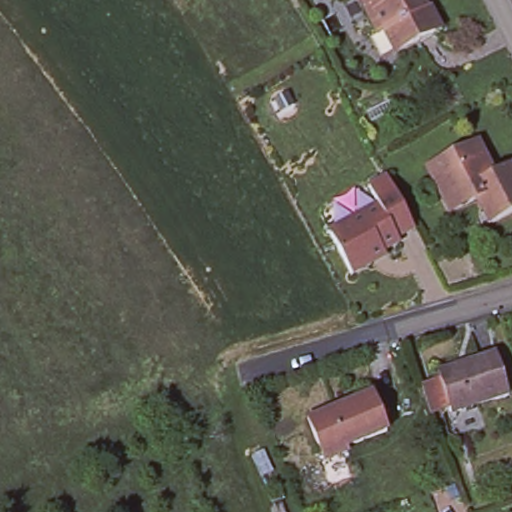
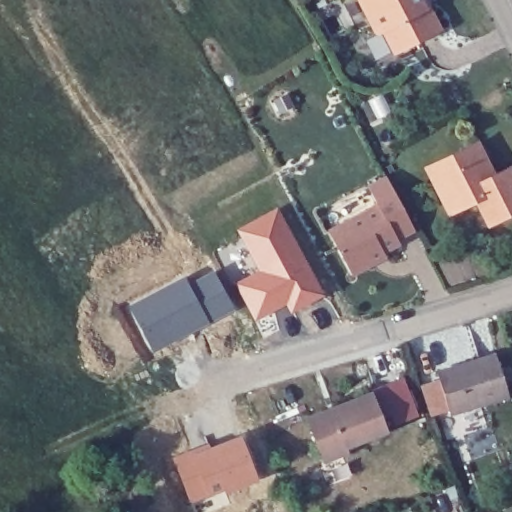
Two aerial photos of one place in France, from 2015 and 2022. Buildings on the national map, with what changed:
unchanged [(424,9),(428,6),(440,29),(395,51),(385,31),(379,35),(361,0),(420,0),(424,9)]
unchanged [(505,168),(512,165),(512,166),(512,208),(490,219),(478,195),(453,208),(437,179),(430,164),(452,152),(477,139),(495,174),(505,168)]
unchanged [(370,181),(389,172),(415,225),(398,233),(381,199),(380,200),(370,181)]
unchanged [(352,268),(330,225),(380,200),(381,199),(398,233),(400,238),(385,246),(387,251),(373,258),(352,268)]
new [(327,295),(292,312),(287,303),(254,320),(236,285),(259,272),(240,233),(280,210),(327,295)]
new [(152,354),(130,310),(187,279),(190,285),(213,271),(234,310),(152,354)]
unchanged [(419,385),(435,380),(433,371),(492,353),(505,395),(445,413),(443,408),(428,413),(419,385)]
unchanged [(372,392),(387,430),(345,446),(347,452),(325,461),(307,417),(372,392)]
new [(259,481),(191,505),(177,460),(242,437),(259,481)]

